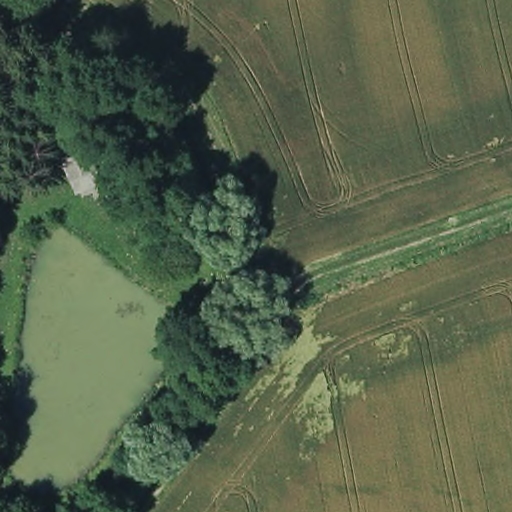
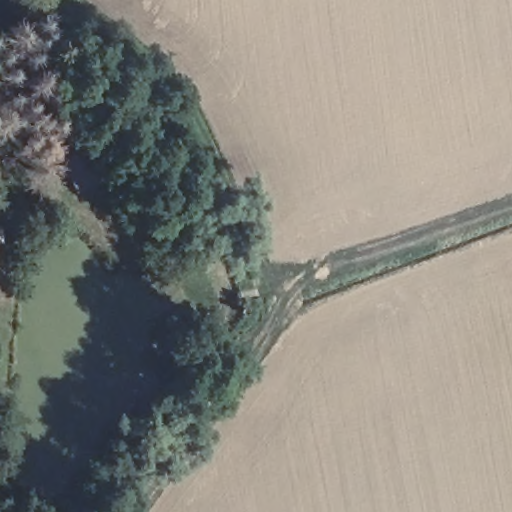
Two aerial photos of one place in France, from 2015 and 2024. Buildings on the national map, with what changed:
unchanged [(59,164),(85,150),(104,185),(75,197),(59,164)]

